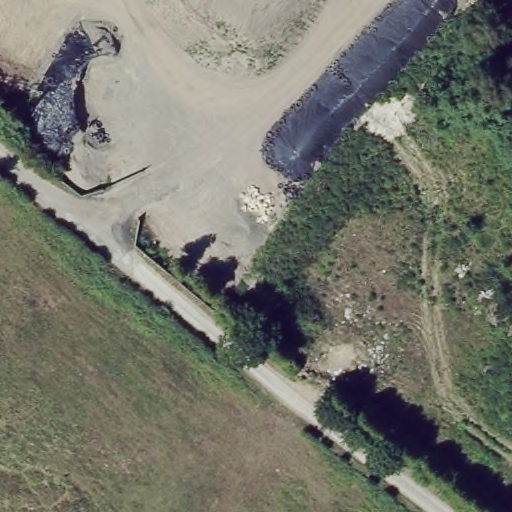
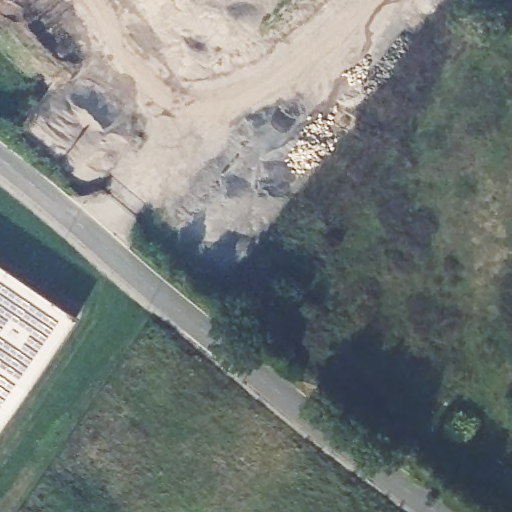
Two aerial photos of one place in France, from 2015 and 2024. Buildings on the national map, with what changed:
new [(79,320),(0,430),(0,267),(79,320)]

